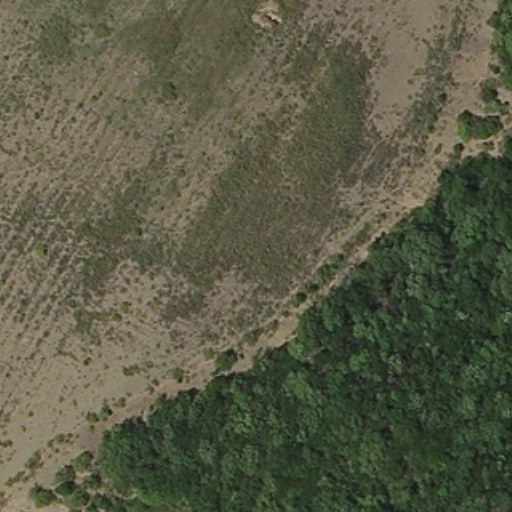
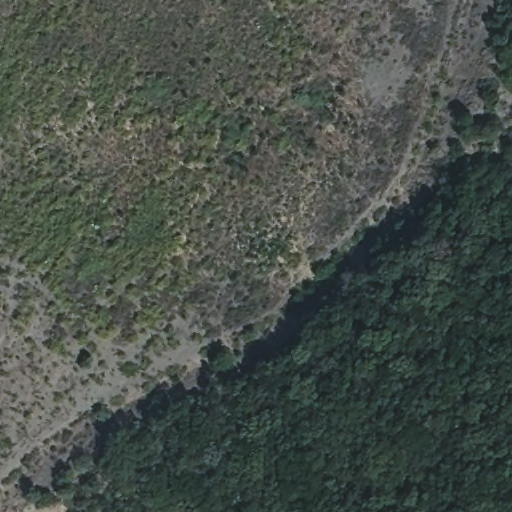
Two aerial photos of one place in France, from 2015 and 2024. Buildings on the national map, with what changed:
[]

